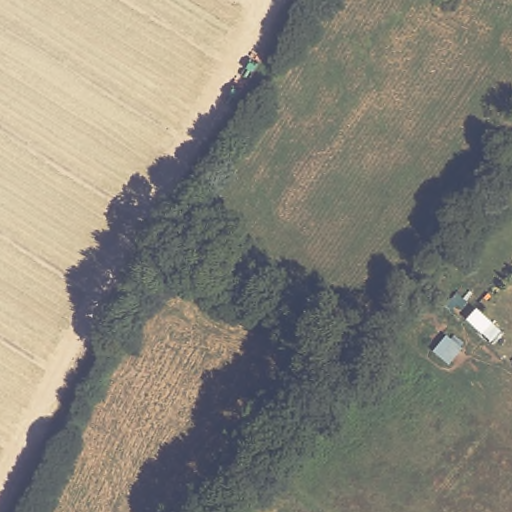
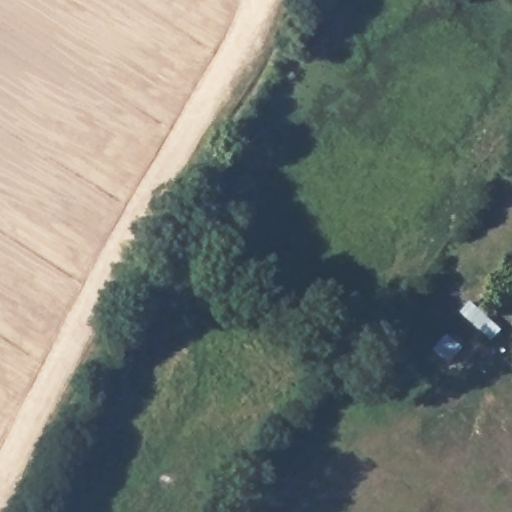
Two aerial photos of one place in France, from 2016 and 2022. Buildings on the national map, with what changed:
[]

